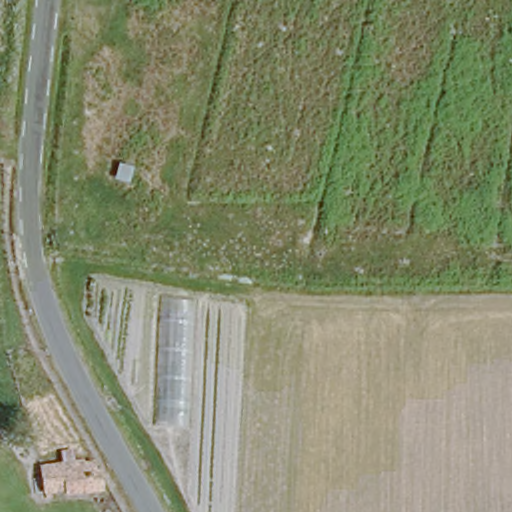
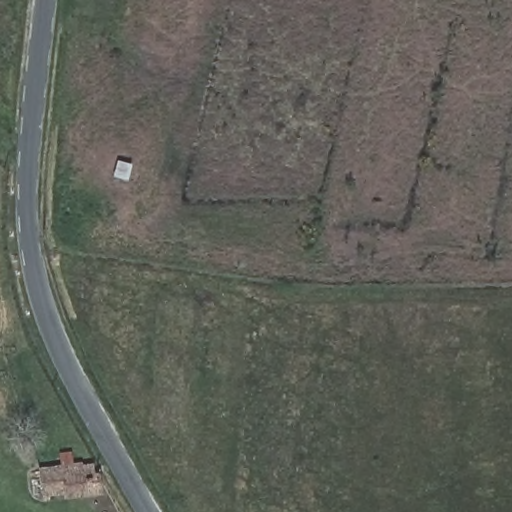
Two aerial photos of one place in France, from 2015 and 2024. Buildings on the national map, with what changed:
demolished [(197,294),(187,430),(151,428),(157,292),(197,294)]
unchanged [(84,487),(47,492),(44,466),(81,461),(81,467),(91,467),(92,474),(100,473),(100,489),(84,491),(84,487)]

